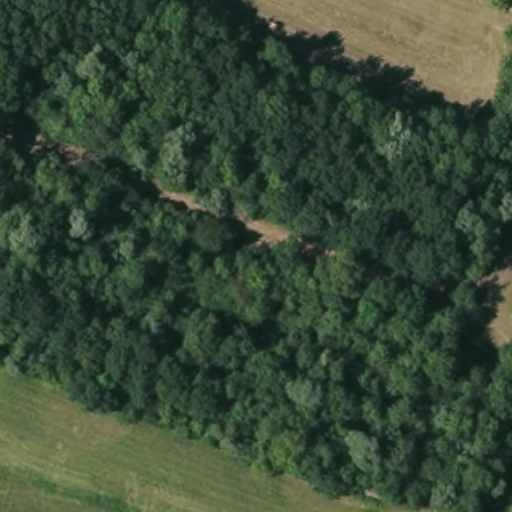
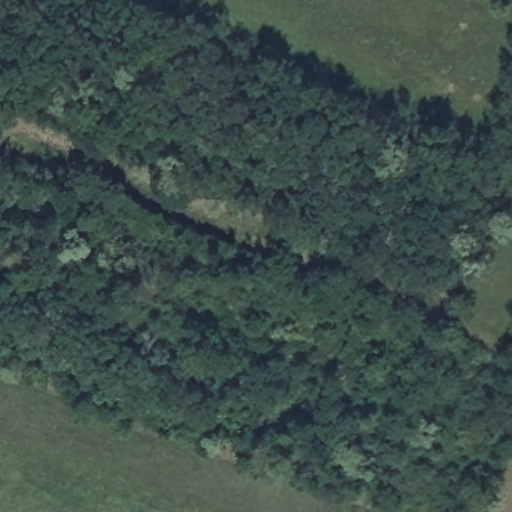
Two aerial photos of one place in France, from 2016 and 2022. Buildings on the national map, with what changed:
[]

